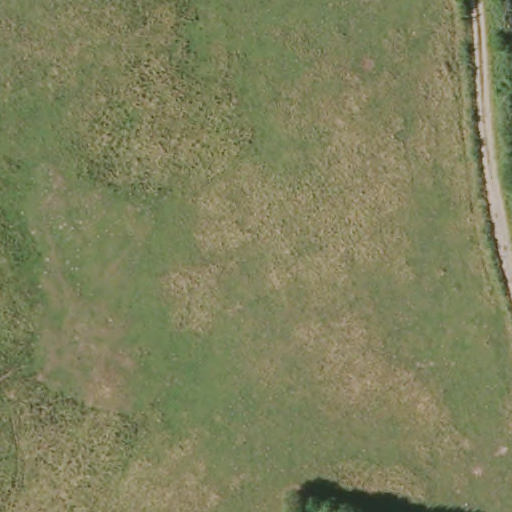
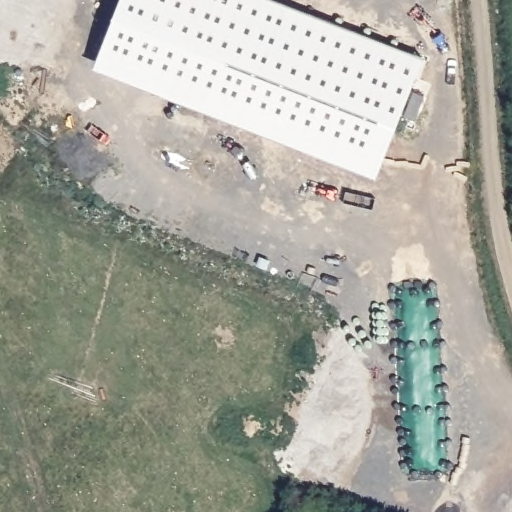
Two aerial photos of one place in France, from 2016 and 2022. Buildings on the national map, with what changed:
new [(124,0),(274,0),(420,57),(375,180),(94,68),(124,0)]

